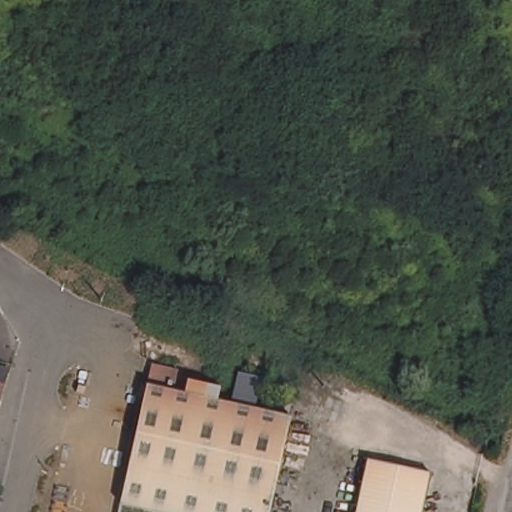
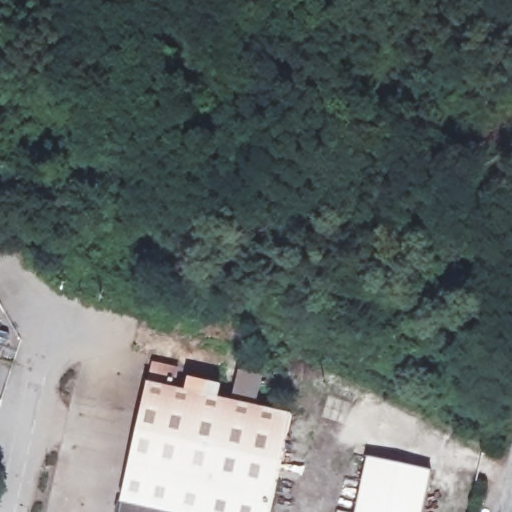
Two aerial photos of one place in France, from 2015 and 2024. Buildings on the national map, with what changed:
unchanged [(230,401),(237,371),(260,377),(254,406),(290,414),(267,512),(114,512),(147,381),(230,401)]
unchanged [(424,512),(355,512),(367,459),(432,474),(424,512)]

